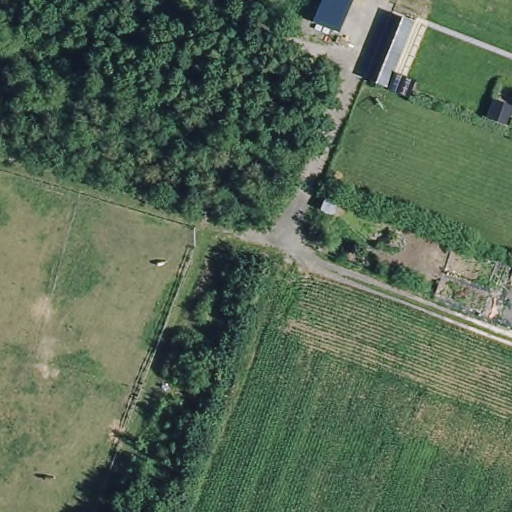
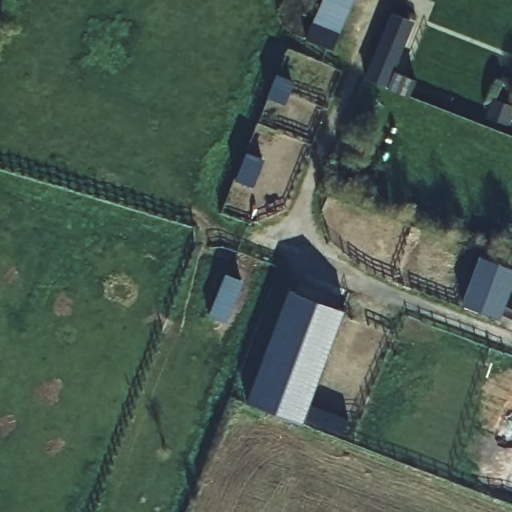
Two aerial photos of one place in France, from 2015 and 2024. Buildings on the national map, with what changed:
unchanged [(315,20),(323,0),(354,0),(341,31),(315,20)]
unchanged [(396,72),(417,79),(411,96),(390,88),(366,79),(393,12),(416,21),(396,72)]
new [(477,263),(496,270),(499,263),(512,268),(512,290),(502,319),(462,305),(477,263)]
new [(227,276),(243,283),(226,322),(210,315),(227,276)]
new [(345,311),(311,405),(349,420),(344,436),(305,420),(304,423),(247,402),(289,290),(345,311)]

